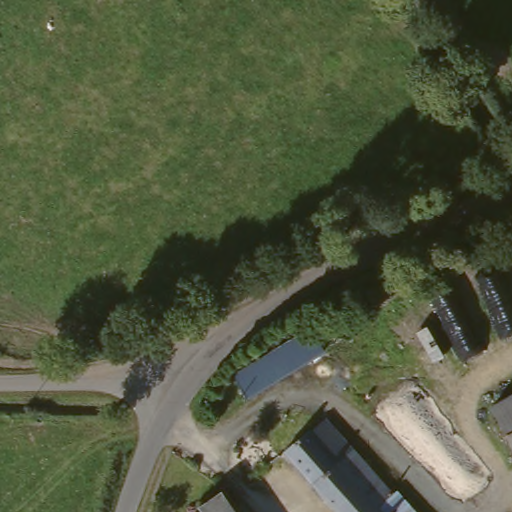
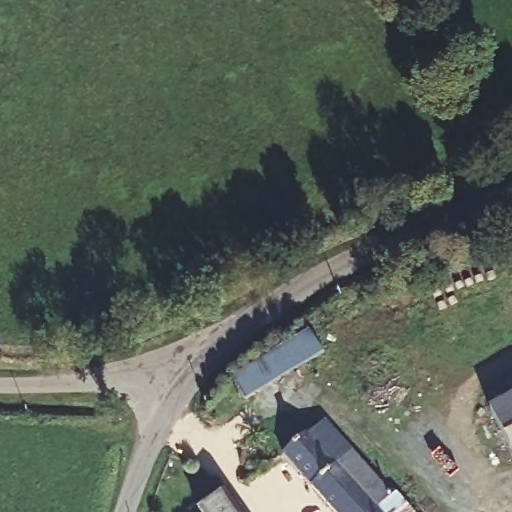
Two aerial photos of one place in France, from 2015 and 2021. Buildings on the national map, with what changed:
unchanged [(316,323),(331,348),(247,396),(234,371),(316,323)]
unchanged [(512,393),(512,442),(490,405),(512,393)]
unchanged [(278,456),(303,435),(331,462),(379,506),(385,512),(337,512),(278,456)]
unchanged [(346,448),(364,465),(393,492),(379,506),(331,462),(346,448)]
unchanged [(247,512),(205,512),(201,506),(199,503),(211,495),(229,483),(247,512)]
unchanged [(393,492),(396,490),(420,512),(385,512),(379,506),(393,492)]

